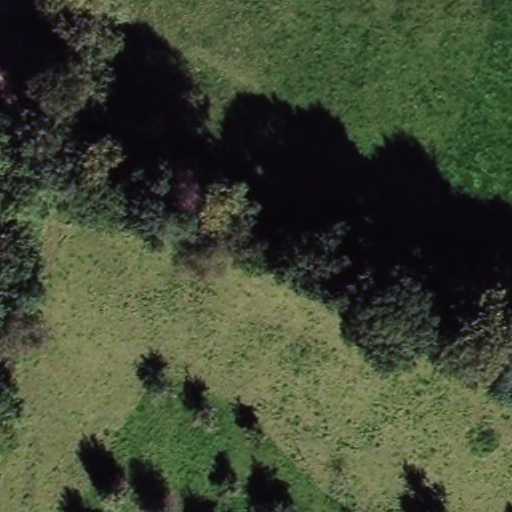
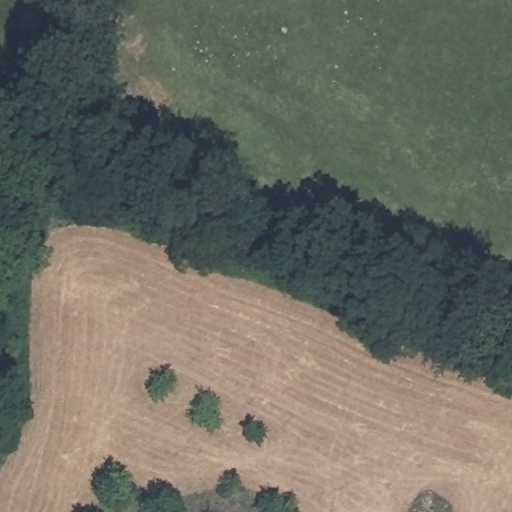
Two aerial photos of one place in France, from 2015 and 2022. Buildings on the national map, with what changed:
unchanged [(286,218),(306,179),(350,203),(329,242),(286,218)]

